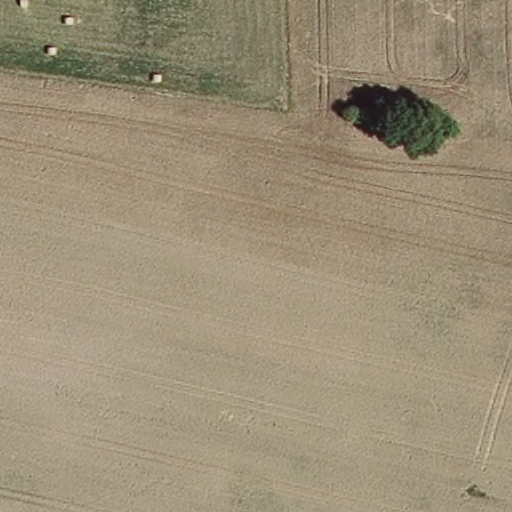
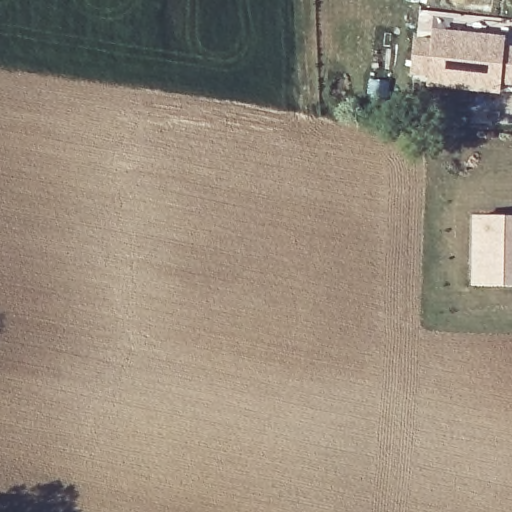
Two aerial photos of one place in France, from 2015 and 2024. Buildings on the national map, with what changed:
new [(503,49),(512,49),(512,85),(501,84),(500,95),(428,88),(430,78),(411,76),(415,39),(433,41),(434,31),(505,38),(503,49)]
new [(471,287),(472,216),(512,217),(512,287),(471,287)]

